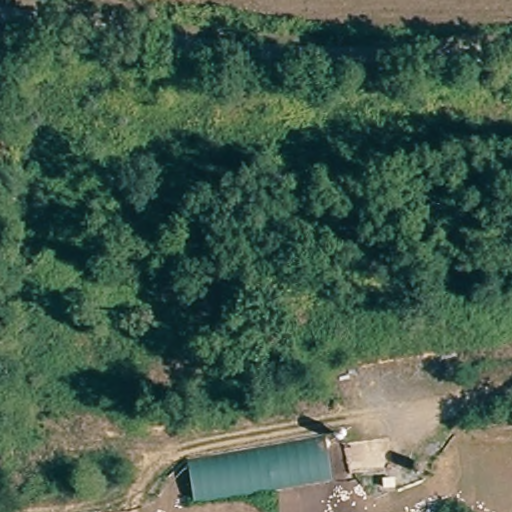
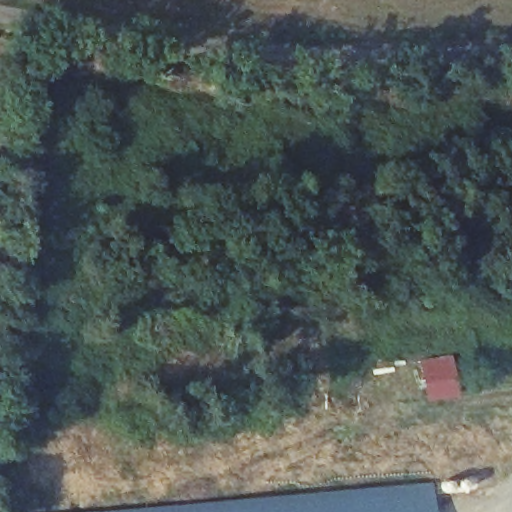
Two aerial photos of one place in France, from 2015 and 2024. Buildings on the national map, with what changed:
new [(423,404),(416,361),(451,355),(458,398),(423,404)]
demolished [(185,456),(322,433),(329,478),(192,499),(185,456)]
new [(434,512),(115,512),(432,484),(434,512)]

